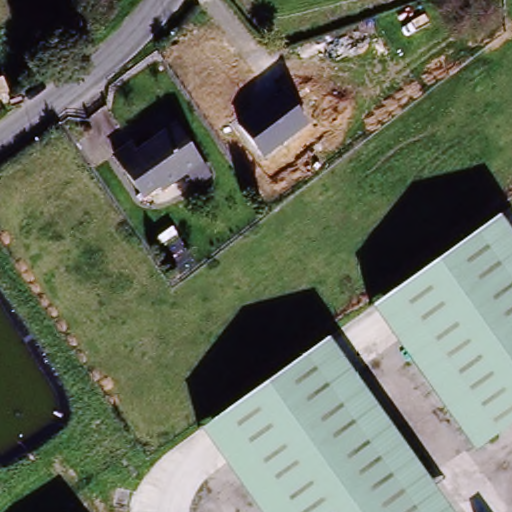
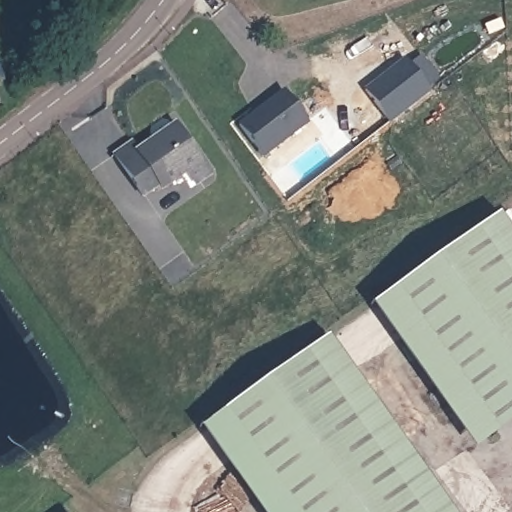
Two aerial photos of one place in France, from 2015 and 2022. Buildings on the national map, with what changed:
new [(405,58),(431,92),(389,123),(364,90),(405,58)]
unchanged [(283,93),(307,125),(263,158),(239,124),(283,93)]
unchanged [(118,162),(134,150),(139,157),(175,130),(211,178),(199,187),(190,175),(166,193),(163,189),(148,201),(118,162)]
unchanged [(499,224),(512,242),(512,430),(473,457),(371,314),(499,224)]
unchanged [(200,434),(328,345),(445,512),(254,512),(200,434)]

